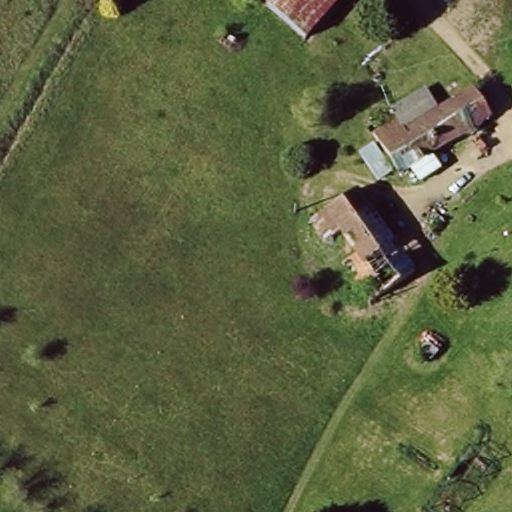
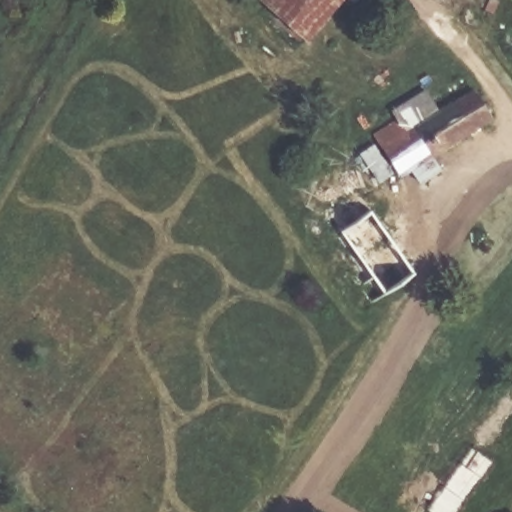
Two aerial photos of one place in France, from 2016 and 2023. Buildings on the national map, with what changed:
unchanged [(329,0),(302,32),(264,0),(329,0)]
unchanged [(432,106),(407,119),(397,100),(421,87),(432,106)]
unchanged [(481,122),(392,176),(387,169),(373,177),(357,151),(372,142),(366,133),(386,122),(392,132),(462,90),(481,122)]
unchanged [(411,267),(366,295),(352,273),(367,265),(330,205),(361,188),(411,267)]

